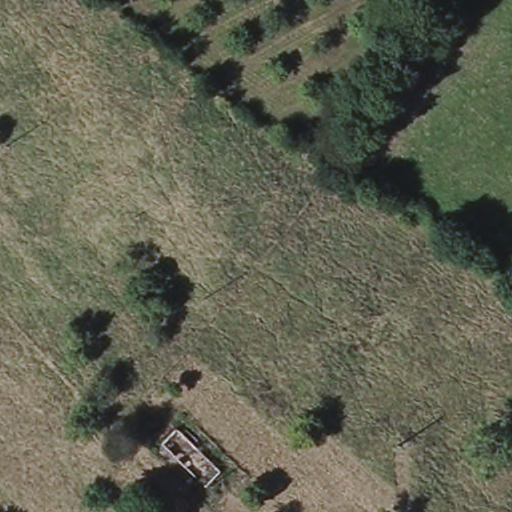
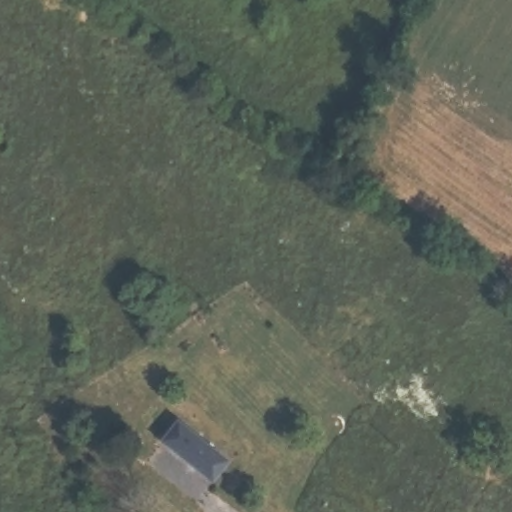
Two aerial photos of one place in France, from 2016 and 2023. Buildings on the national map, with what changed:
new [(180,415),(227,455),(211,475),(164,435),(180,415)]
demolished [(178,433),(221,474),(207,487),(166,447),(178,433)]

